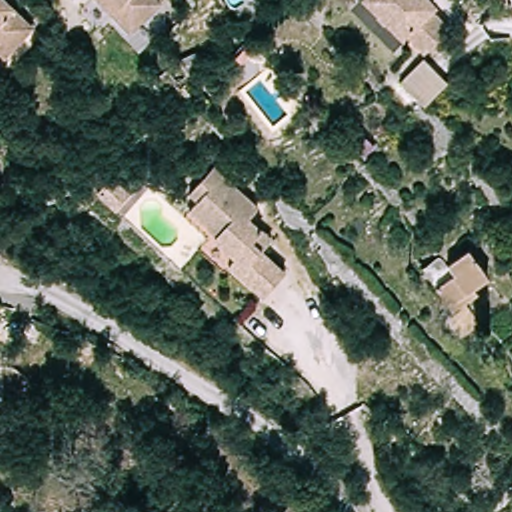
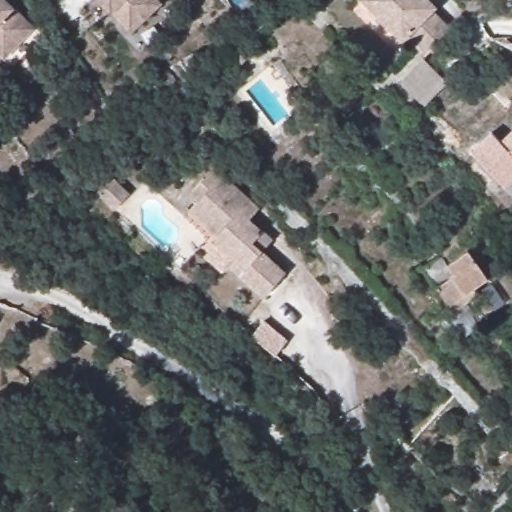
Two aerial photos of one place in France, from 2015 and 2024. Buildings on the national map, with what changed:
unchanged [(5,0),(34,27),(3,60),(0,57),(0,0),(5,0)]
unchanged [(113,11),(102,0),(164,0),(133,31),(113,11)]
unchanged [(402,41),(360,0),(430,0),(436,6),(432,10),(450,26),(422,54),(406,37),(402,41)]
unchanged [(447,82),(423,106),(398,80),(420,56),(447,82)]
new [(471,151),(491,132),(500,141),(512,130),(512,182),(505,189),(471,151)]
unchanged [(226,261),(232,255),(211,234),(214,231),(187,205),(195,196),(187,188),(212,160),(258,202),(249,213),(262,225),(252,236),(284,266),(261,293),(226,261)]
unchanged [(431,256),(433,256),(435,256),(438,259),(442,263),(445,269),(481,242),(498,265),(483,276),(488,282),(462,301),(448,311),(419,265),(428,258),(431,256)]

